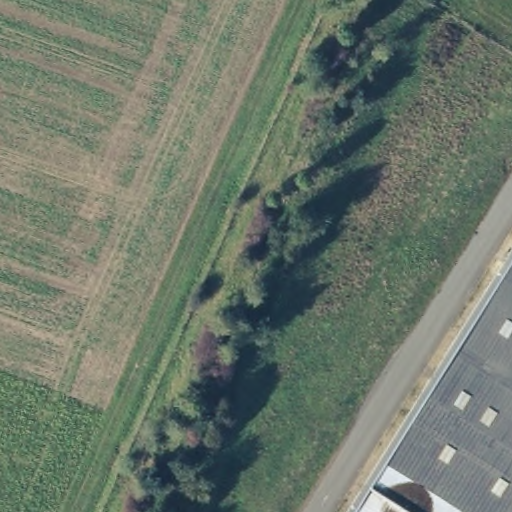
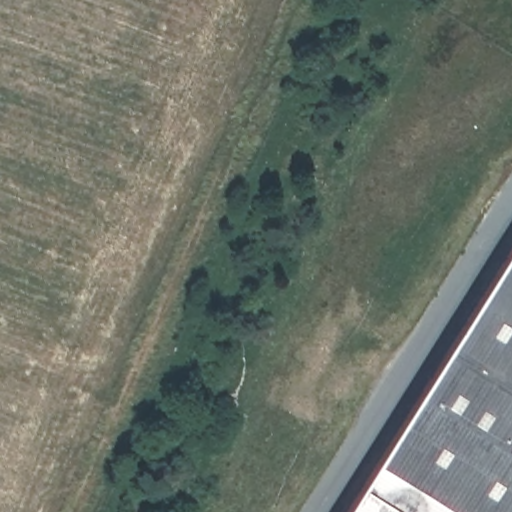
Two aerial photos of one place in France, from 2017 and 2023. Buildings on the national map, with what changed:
unchanged [(512,245),(512,512),(344,512),(512,245)]

